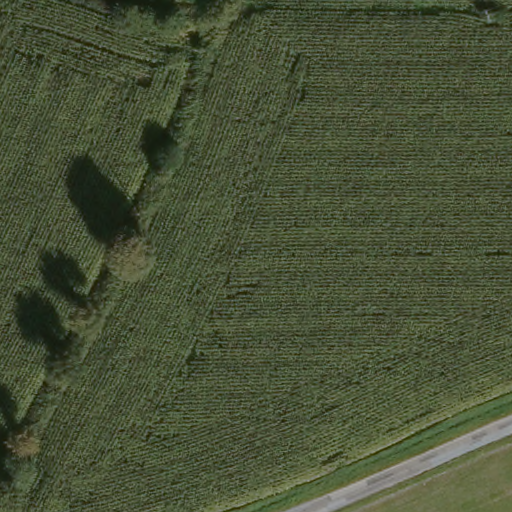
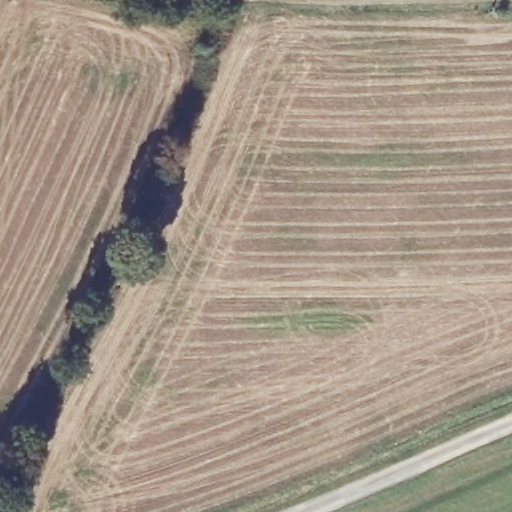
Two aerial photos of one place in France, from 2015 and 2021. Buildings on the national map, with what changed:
[]

